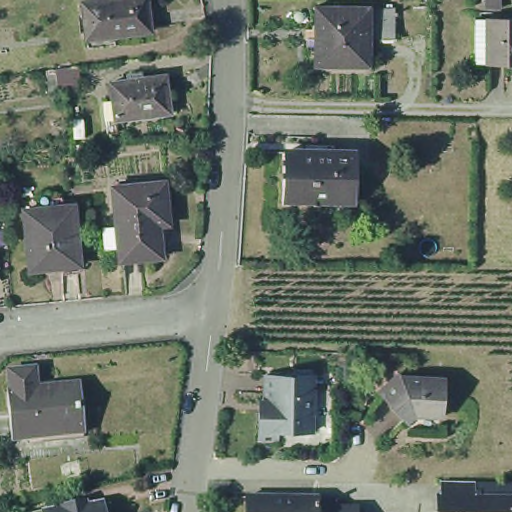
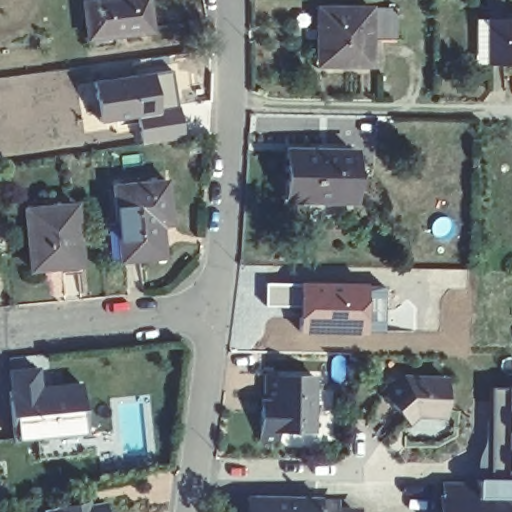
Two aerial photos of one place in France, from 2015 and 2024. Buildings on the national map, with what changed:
unchanged [(155,25),(117,30),(118,39),(92,43),(86,0),(152,0),(155,25)]
unchanged [(318,1),(370,1),(371,2),(397,3),(396,34),(371,33),(370,61),(316,59),(318,1)]
unchanged [(512,13),(512,54),(511,54),(511,58),(490,57),(490,12),(512,13)]
unchanged [(77,65),(79,78),(75,79),(77,89),(59,92),(57,90),(47,92),(44,70),(77,65)]
unchanged [(116,99),(114,80),(130,79),(129,72),(145,71),(145,77),(170,74),(174,110),(119,116),(120,129),(110,130),(107,100),(116,99)]
unchanged [(288,154),(293,154),(295,153),(359,154),(358,203),(357,205),(357,209),(287,208),(288,154)]
unchanged [(164,174),(169,216),(158,217),(162,250),(119,254),(111,179),(164,174)]
unchanged [(77,197),(85,258),(65,260),(65,265),(36,268),(35,263),(34,263),(27,202),(77,197)]
new [(364,283),(385,285),(383,332),(364,333),(299,332),(300,306),(265,305),(265,282),(300,283),(300,280),(364,283)]
unchanged [(10,386),(9,366),(35,363),(37,383),(80,378),(84,426),(13,433),(8,386),(10,386)]
unchanged [(265,402),(276,403),(277,390),(270,390),(270,378),(270,368),(317,368),(317,379),(317,412),(316,424),(282,424),(282,433),(264,433),(265,410),(265,402)]
unchanged [(392,380),(405,369),(449,371),(448,381),(447,409),(420,408),(412,414),(385,387),(392,380)]
new [(490,491),(490,384),(512,385),(512,492),(490,491)]
unchanged [(454,474),(474,475),(479,475),(479,491),(512,492),(512,512),(444,512),(445,474),(454,474)]
unchanged [(317,495),(317,508),(325,508),(353,508),(353,512),(242,512),(243,494),(317,495)]
unchanged [(70,505),(72,502),(88,499),(90,504),(107,501),(108,512),(46,512),(46,509),(70,505)]

